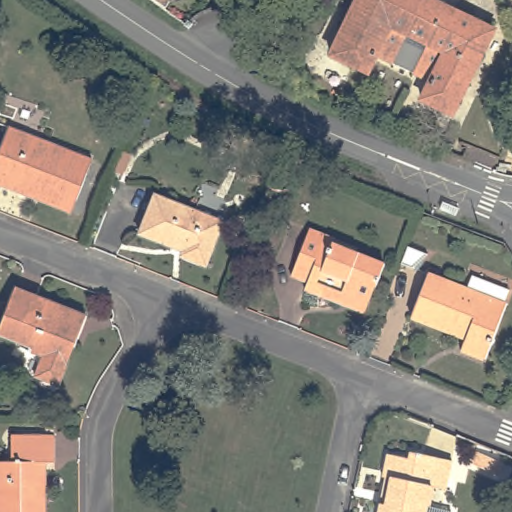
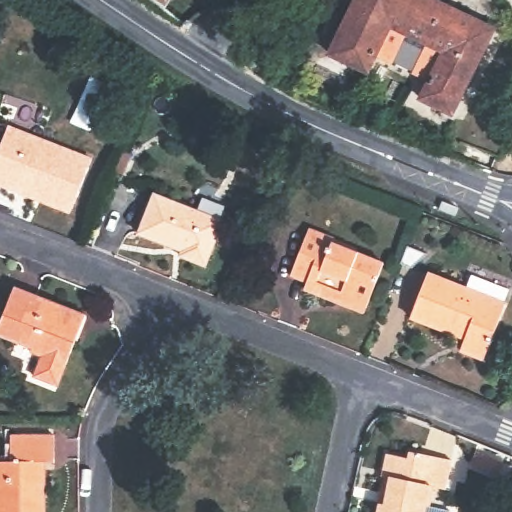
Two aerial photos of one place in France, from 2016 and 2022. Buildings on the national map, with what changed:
unchanged [(354,10),(359,0),(409,0),(393,30),(354,10)]
unchanged [(429,0),(495,32),(455,114),(429,98),(448,55),(393,30),(409,0),(429,0)]
unchanged [(333,56),(354,10),(393,30),(370,75),(333,56)]
unchanged [(95,160),(73,214),(0,185),(0,157),(11,127),(95,160)]
unchanged [(162,190),(232,217),(215,263),(189,253),(190,249),(146,231),(162,190)]
unchanged [(328,255),(351,265),(355,255),(382,267),(365,310),(340,300),(337,305),(303,291),(305,283),(290,277),(308,230),(333,241),(332,246),(328,255)]
unchanged [(433,270),(512,303),(490,358),(465,348),(470,336),(415,314),(433,270)]
unchanged [(19,285),(90,313),(62,385),(38,376),(46,355),(34,350),(35,346),(1,332),(19,285)]
unchanged [(63,435),(63,464),(54,465),(54,512),(0,512),(0,461),(20,461),(20,436),(63,435)]
unchanged [(385,476),(382,475),(387,451),(408,455),(410,450),(451,460),(445,489),(428,485),(425,505),(449,511),(449,512),(377,512),(385,476)]

